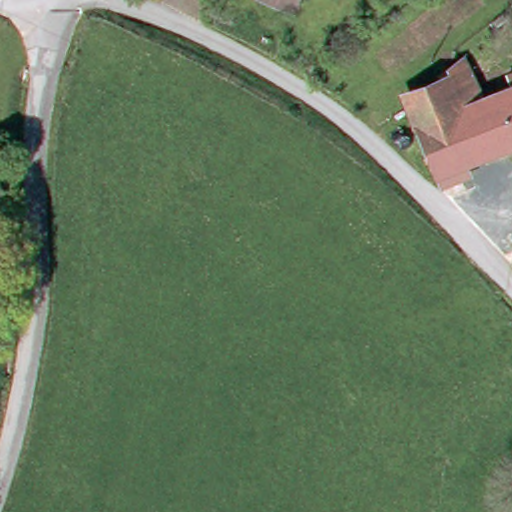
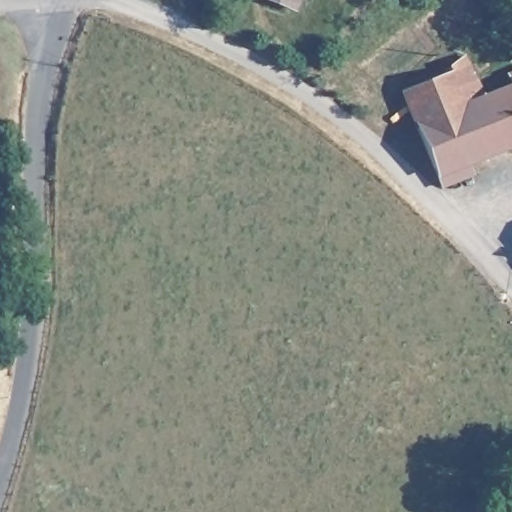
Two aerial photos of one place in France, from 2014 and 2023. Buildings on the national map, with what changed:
unchanged [(269,0),(292,0),(287,9),(269,0)]
unchanged [(296,0),(300,0),(300,2),(296,0)]
unchanged [(440,82),(463,61),(471,68),(467,74),(482,101),(512,88),(512,145),(467,166),(475,186),(448,197),(405,109),(442,91),(440,82)]
unchanged [(512,71),(512,88),(507,73),(512,71)]

